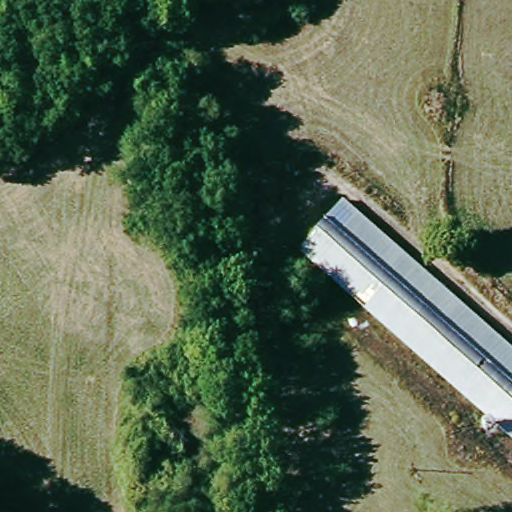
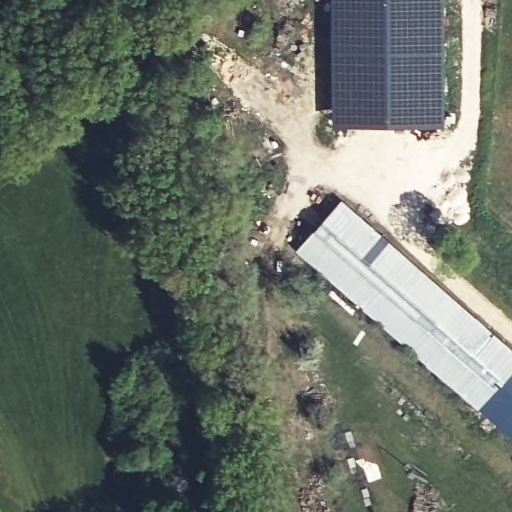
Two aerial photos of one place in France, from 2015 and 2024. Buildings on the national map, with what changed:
new [(445,123),(333,125),(332,82),(331,0),(444,0),(445,123)]
unchanged [(512,443),(297,254),(340,202),(512,352),(512,443)]

